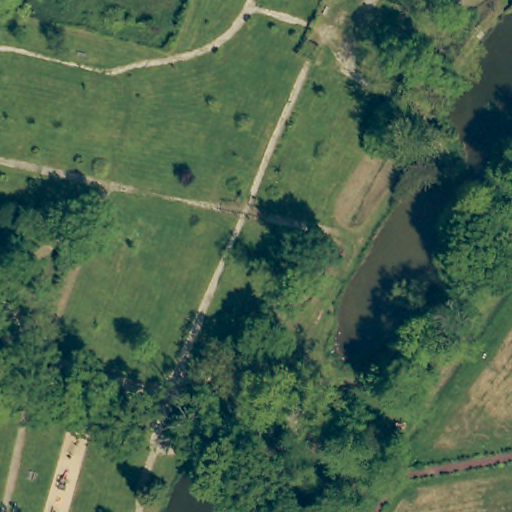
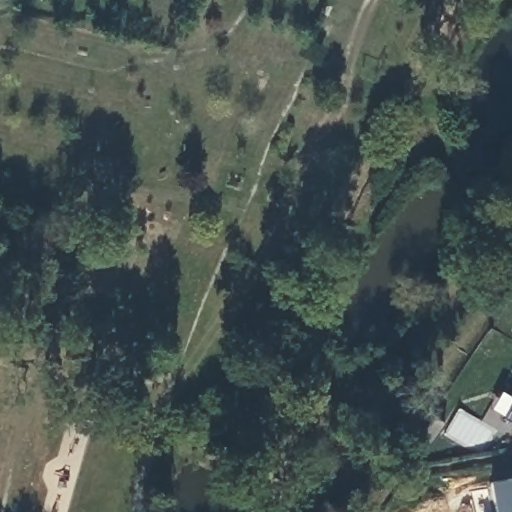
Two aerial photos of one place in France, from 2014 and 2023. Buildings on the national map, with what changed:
new [(503,419),(507,411),(512,401),(512,424),(503,419)]
new [(494,512),(488,482),(512,478),(512,512),(494,512)]

